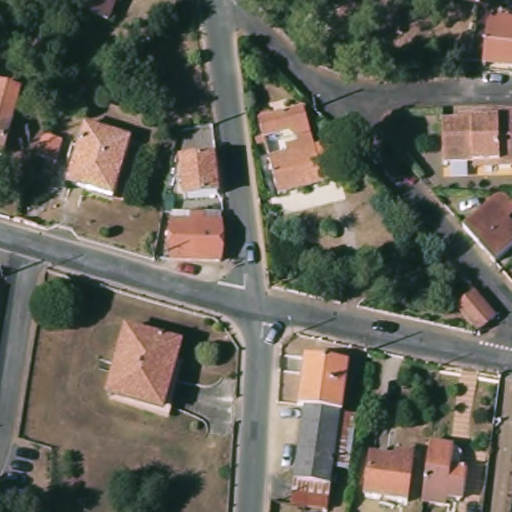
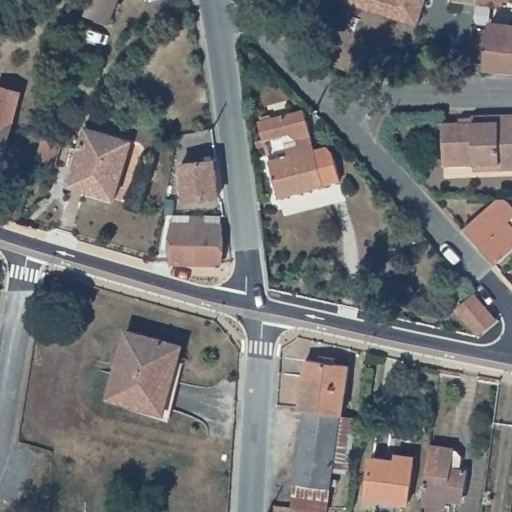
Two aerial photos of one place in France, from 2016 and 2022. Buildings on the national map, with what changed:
unchanged [(103,23),(79,14),(85,0),(112,0),(103,23)]
new [(406,23),(345,6),(347,0),(425,0),(419,19),(417,26),(406,23)]
unchanged [(501,10),(486,7),(469,5),(457,0),(502,0),(501,10)]
unchanged [(479,24),(512,27),(512,73),(472,70),(479,24)]
unchanged [(15,89),(0,142),(0,85),(15,89)]
unchanged [(297,111),(309,149),(319,147),(327,156),(333,181),(272,198),(263,162),(281,157),(279,149),(276,136),(257,141),(254,124),(297,111)]
unchanged [(467,166),(437,167),(437,123),(457,123),(457,118),(467,118),(467,116),(510,115),(511,172),(494,172),(468,173),(467,166)]
unchanged [(124,141),(107,199),(62,186),(78,127),(124,141)]
unchanged [(252,149),(251,142),(257,141),(259,148),(252,149)]
unchanged [(209,162),(213,198),(181,201),(176,165),(209,162)]
unchanged [(496,207),(505,217),(469,251),(453,234),(484,206),(496,207)]
unchanged [(190,263),(167,262),(167,224),(191,225),(191,216),(216,217),(215,226),(215,263),(190,263)]
unchanged [(511,225),(502,234),(512,245),(512,247),(486,270),(469,251),(505,217),(506,218),(511,225)]
unchanged [(474,297),(493,320),(477,334),(458,312),(474,297)]
unchanged [(176,343),(159,409),(103,395),(119,329),(176,343)]
unchanged [(347,473),(331,471),(325,511),(289,506),(303,410),(298,410),(305,361),(327,364),(328,357),(336,358),(335,365),(347,367),(339,417),(353,418),(347,473)]
unchanged [(456,452),(457,456),(456,469),(462,470),(457,501),(442,498),(441,505),(420,502),(428,444),(449,447),(456,452)]
unchanged [(383,458),(409,462),(404,503),(362,497),(367,456),(383,458)]

